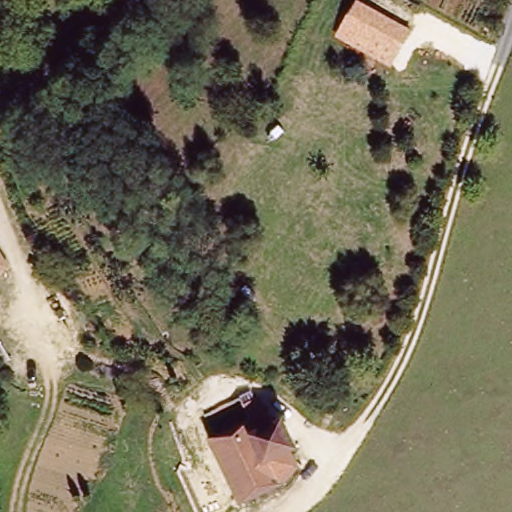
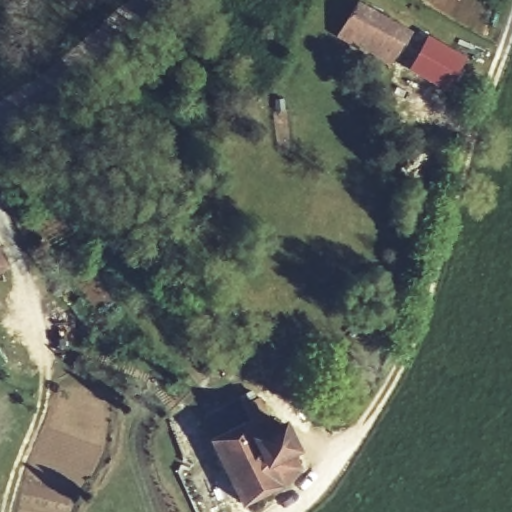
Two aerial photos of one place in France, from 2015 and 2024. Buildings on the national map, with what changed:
unchanged [(412,30),(391,69),(335,38),(355,1),(412,30)]
new [(467,57),(448,91),(409,69),(428,36),(467,57)]
unchanged [(0,272),(0,258),(6,268),(0,272)]
unchanged [(0,330),(0,300),(12,322),(0,330)]
unchanged [(211,450),(198,425),(237,407),(249,432),(211,450)]
unchanged [(254,443),(277,432),(287,452),(282,454),(292,474),(275,492),(240,512),(209,452),(211,450),(249,432),(254,443)]

